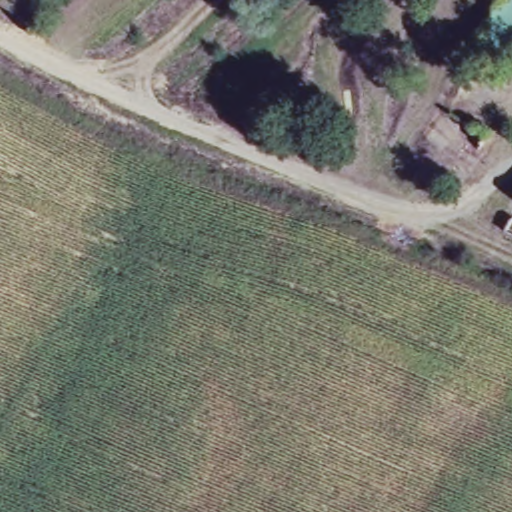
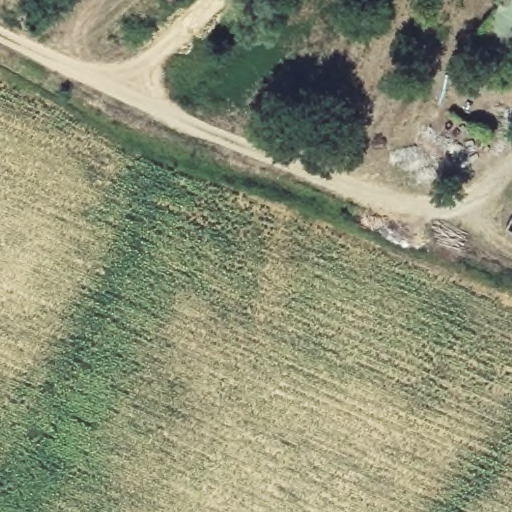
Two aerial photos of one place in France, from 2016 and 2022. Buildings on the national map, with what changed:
unchanged [(505,0),(512,0),(512,62),(480,44),(505,0)]

